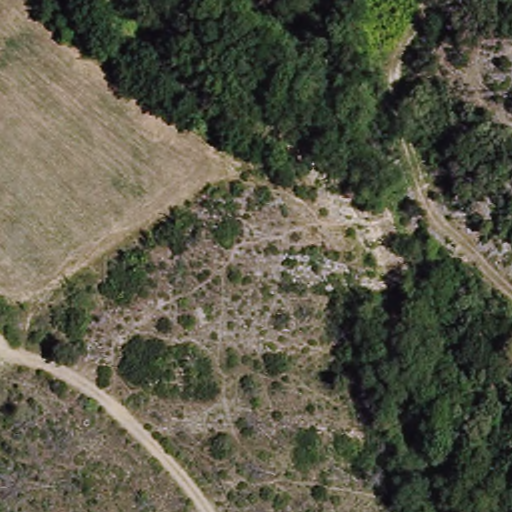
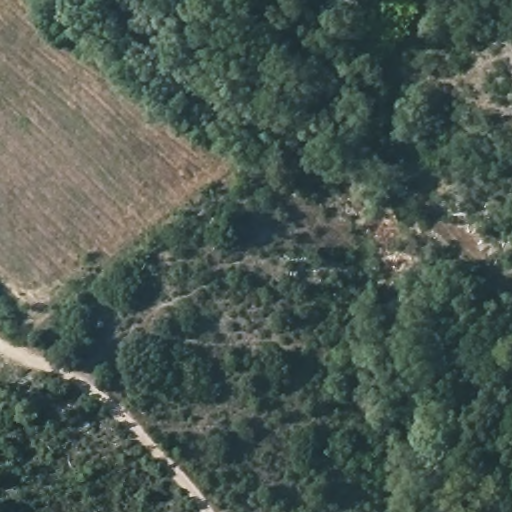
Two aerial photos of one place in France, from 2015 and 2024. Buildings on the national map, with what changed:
[]

